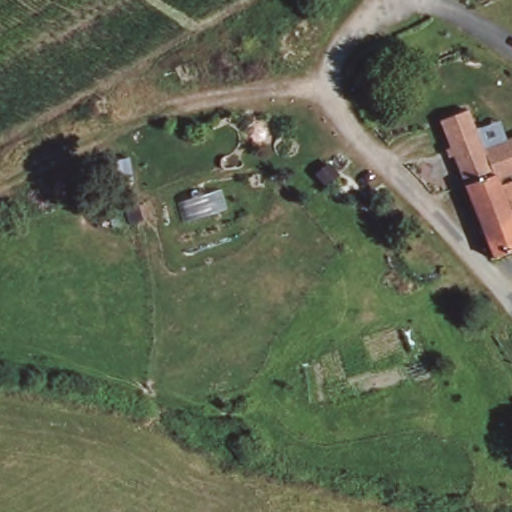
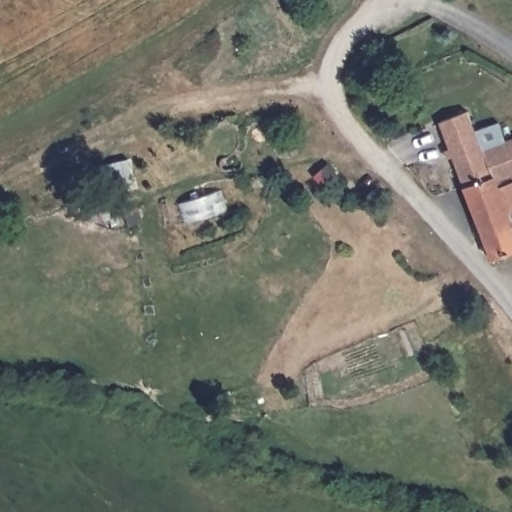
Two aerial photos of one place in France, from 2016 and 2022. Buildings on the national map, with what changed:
unchanged [(483,155),(450,167),(437,122),(467,112),(483,155)]
unchanged [(512,123),(512,182),(496,188),(499,194),(512,189),(512,218),(506,220),(512,237),(512,259),(485,268),(459,193),(450,167),(483,155),(500,147),(494,130),(512,123)]

